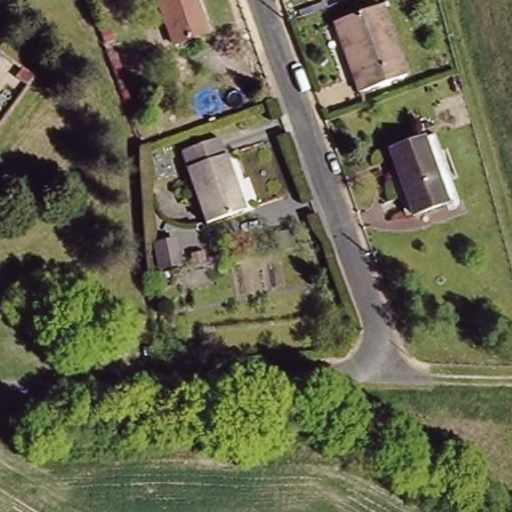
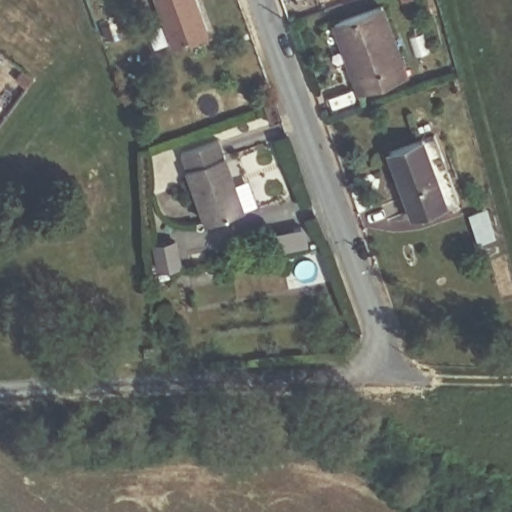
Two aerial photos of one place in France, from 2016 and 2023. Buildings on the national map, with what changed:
unchanged [(211,36),(179,49),(160,0),(198,0),(211,36)]
unchanged [(342,19),(387,3),(411,72),(367,88),(342,19)]
unchanged [(389,152),(434,135),(455,198),(410,214),(389,152)]
unchanged [(181,151),(217,138),(242,208),(205,222),(181,151)]

